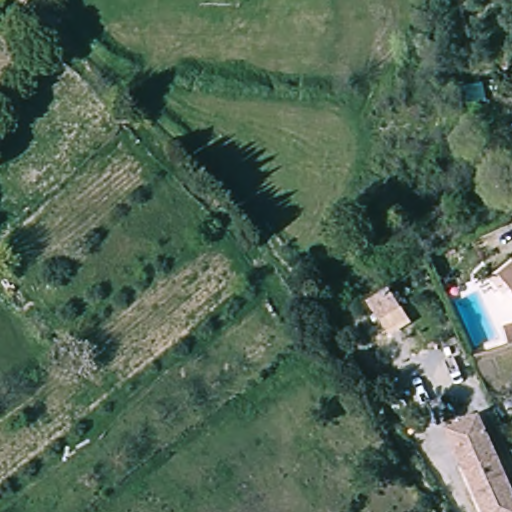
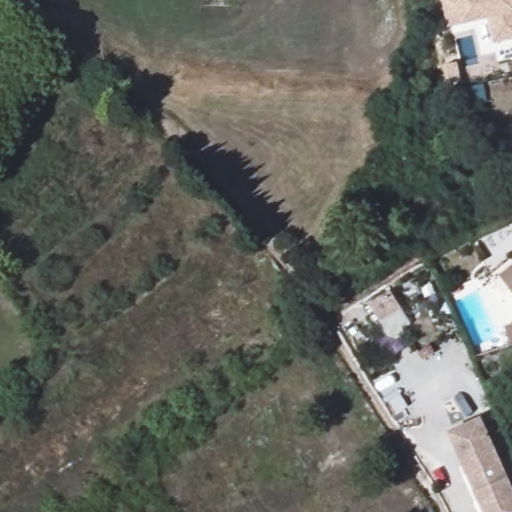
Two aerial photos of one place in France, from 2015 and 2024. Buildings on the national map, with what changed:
new [(493,43),(487,18),(461,23),(449,26),(442,0),(512,0),(512,38),(493,43)]
unchanged [(512,277),(512,292),(505,284),(512,277)]
new [(397,307),(408,325),(384,340),(372,321),(397,307)]
unchanged [(504,363),(498,344),(512,339),(512,360),(504,363)]
unchanged [(512,488),(512,512),(484,512),(449,433),(480,419),(512,488)]

